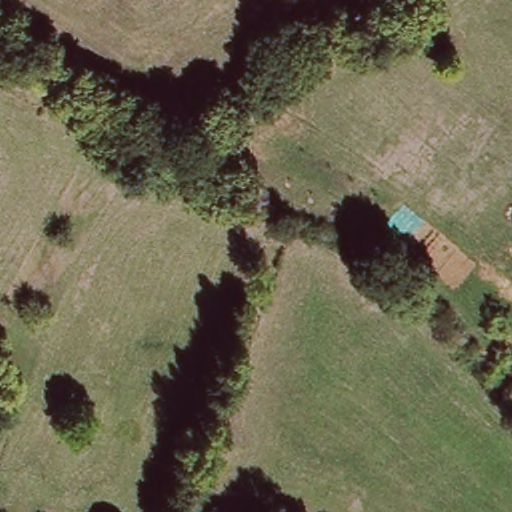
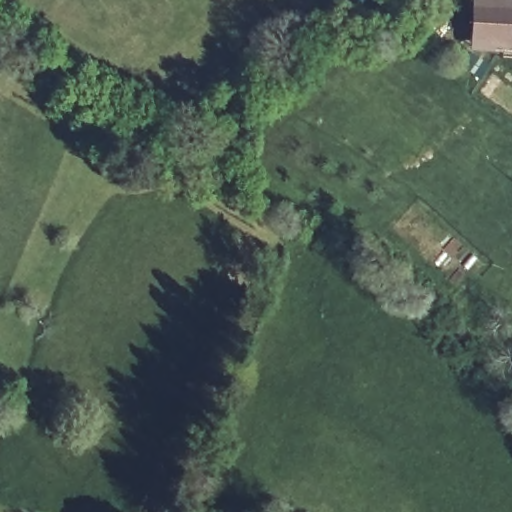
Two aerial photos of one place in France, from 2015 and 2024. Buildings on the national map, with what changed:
new [(512,53),(470,50),(472,0),(512,0),(512,53)]

